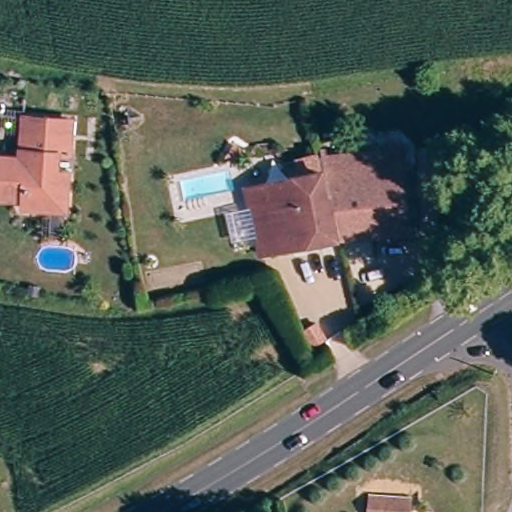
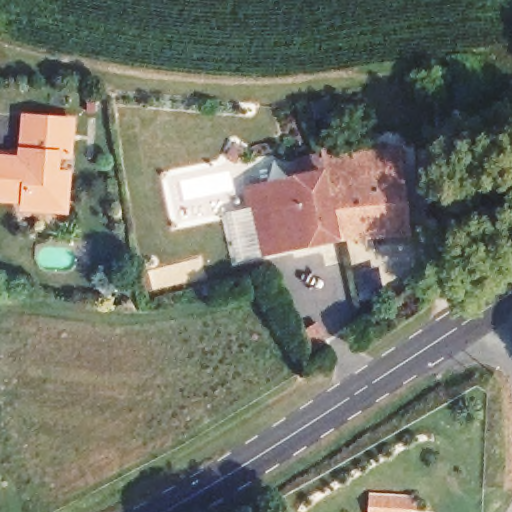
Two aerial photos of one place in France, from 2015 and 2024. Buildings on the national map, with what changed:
unchanged [(24,204),(25,196),(0,193),(0,151),(16,153),(16,155),(29,156),(30,146),(24,146),(27,111),(75,115),(72,150),(59,149),(57,167),(71,168),(68,197),(67,207),(42,205),(24,204)]
unchanged [(411,232),(342,236),(326,154),(406,150),(411,232)]
unchanged [(340,236),(266,250),(251,183),(327,168),(340,236)]
unchanged [(412,512),(372,508),(374,488),(415,491),(412,512)]

